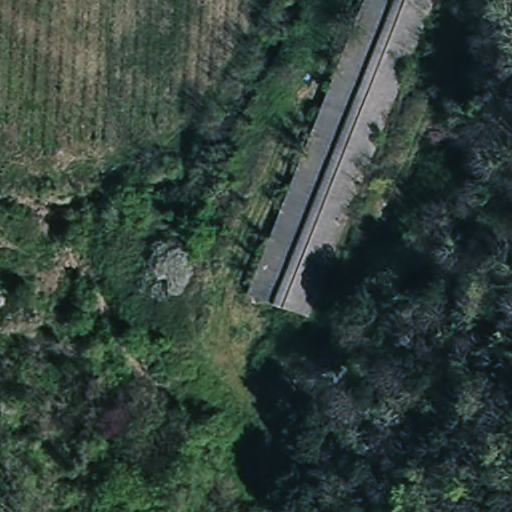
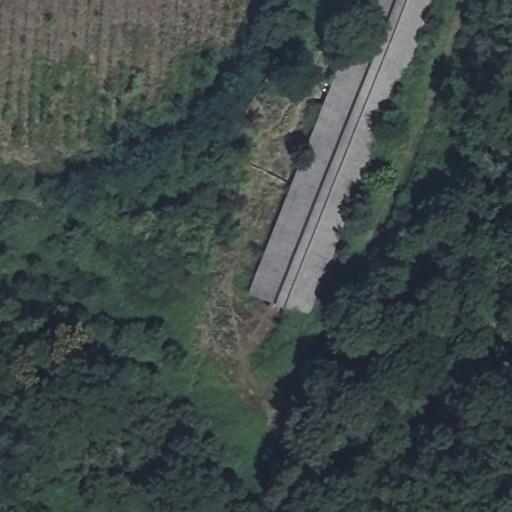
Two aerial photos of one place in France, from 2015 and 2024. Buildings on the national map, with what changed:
unchanged [(369,0),(441,0),(305,316),(251,289),(246,285),(369,0)]

